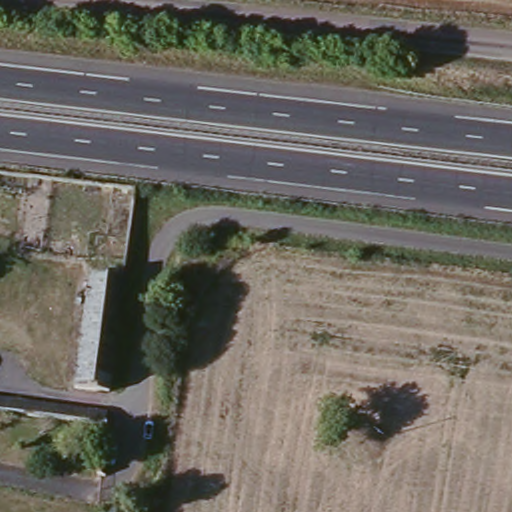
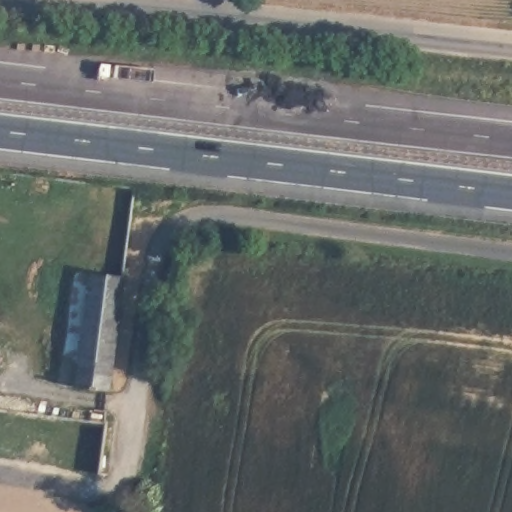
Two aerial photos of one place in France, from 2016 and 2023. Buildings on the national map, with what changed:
unchanged [(111,395),(68,390),(69,379),(80,268),(125,275),(112,384),(111,395)]
unchanged [(25,392),(27,392),(102,403),(101,419),(0,406),(0,388),(25,392)]

